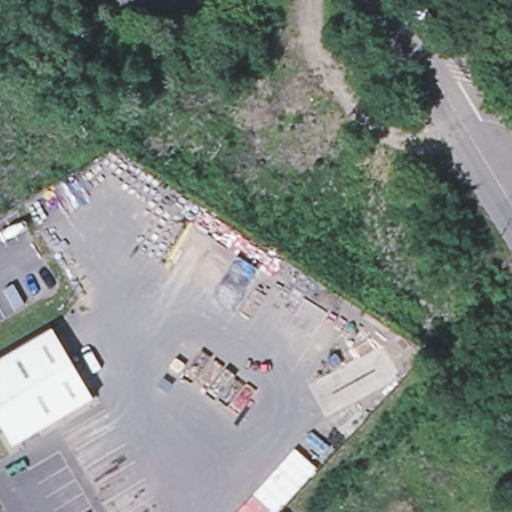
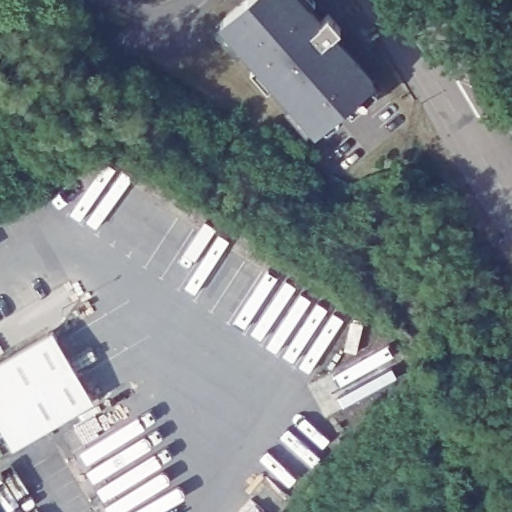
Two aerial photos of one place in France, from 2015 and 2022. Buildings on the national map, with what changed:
new [(320,20),(329,13),(341,27),(333,35),(340,42),(375,82),(318,132),(220,21),(243,0),(303,0),(308,6),(320,20)]
unchanged [(200,13),(202,14),(205,15),(207,17),(207,21),(207,24),(205,27),(203,29),(200,30),(197,30),(195,29),(192,26),(191,22),(192,19),(193,16),(195,15),(197,14),(200,13)]
unchanged [(90,400),(12,446),(0,425),(0,362),(50,332),(90,400)]

